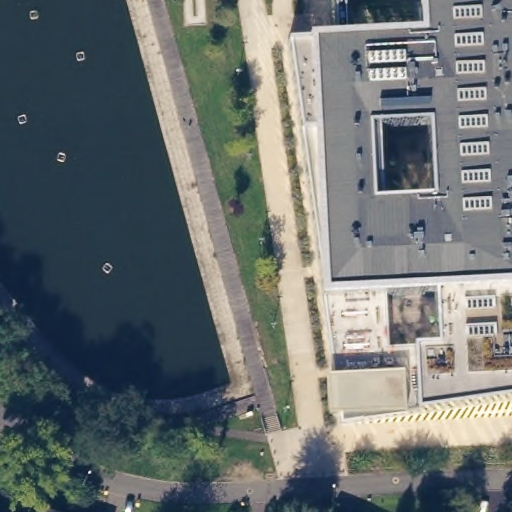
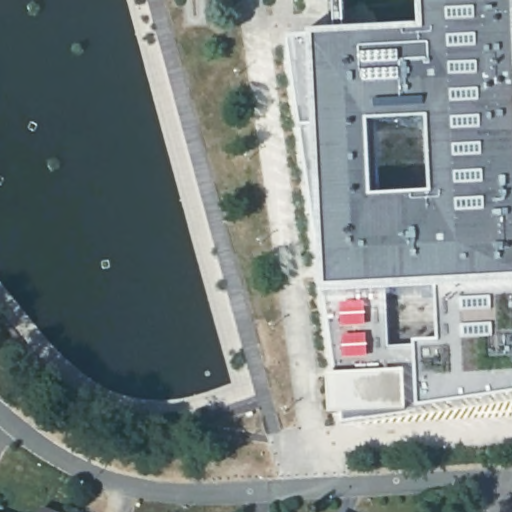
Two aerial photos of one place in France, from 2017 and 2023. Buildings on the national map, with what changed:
unchanged [(421,410),(344,421),(342,414),(327,415),(326,375),(335,375),(332,364),(325,315),(322,302),(319,211),(303,149),(287,44),(309,44),(337,41),(334,0),(345,0),(346,37),(416,33),(414,0),(512,0),(512,397),(421,410)]
unchanged [(48,495),(75,505),(73,510),(78,512),(42,512),(48,495)]
unchanged [(14,506),(28,512),(0,512),(0,506),(12,511),(14,506)]

